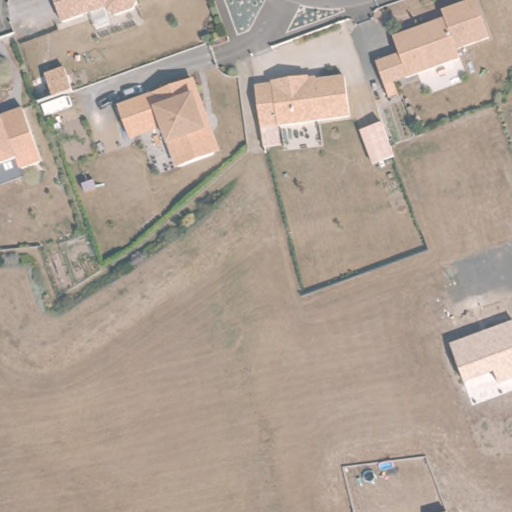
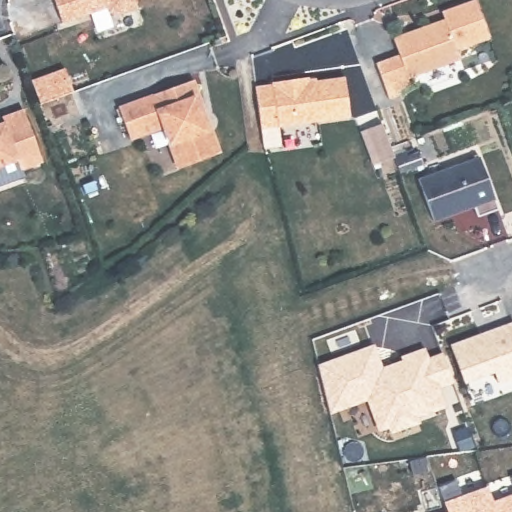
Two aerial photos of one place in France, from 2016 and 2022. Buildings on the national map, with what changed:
unchanged [(137,10),(119,16),(112,13),(110,9),(66,24),(57,0),(139,0),(140,3),(137,10)]
unchanged [(474,0),(488,39),(456,51),(459,60),(407,79),(392,39),(437,23),(438,26),(445,24),(441,13),(474,0)]
unchanged [(308,83),(344,75),(352,114),(263,132),(257,99),(255,90),(272,87),(272,84),(307,78),(308,83)]
unchanged [(177,169),(162,128),(128,139),(117,109),(190,82),(202,113),(210,134),(215,149),(212,156),(177,169)]
unchanged [(7,124),(5,120),(19,114),(27,112),(46,164),(24,172),(21,163),(0,170),(0,127),(7,124)]
new [(387,125),(398,158),(380,164),(368,131),(387,125)]
new [(476,156),(494,198),(492,199),(496,209),(477,216),(472,206),(434,220),(418,178),(476,156)]
unchanged [(492,373),(465,383),(449,344),(512,323),(512,378),(497,383),(492,373)]
new [(373,343),(382,366),(401,359),(398,356),(423,346),(428,357),(442,351),(454,382),(440,387),(446,406),(418,416),(420,423),(389,433),(387,428),(379,432),(367,401),(330,414),(317,363),(373,343)]

